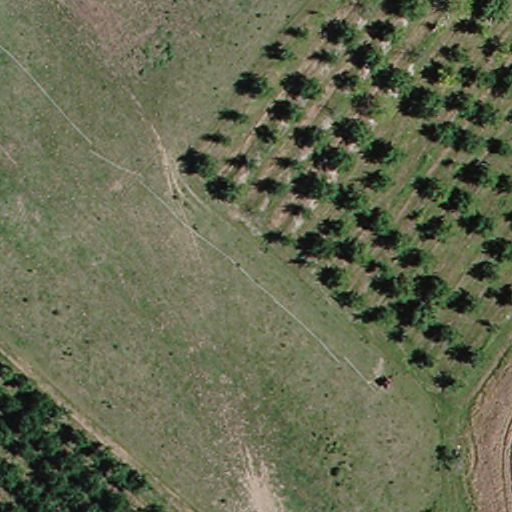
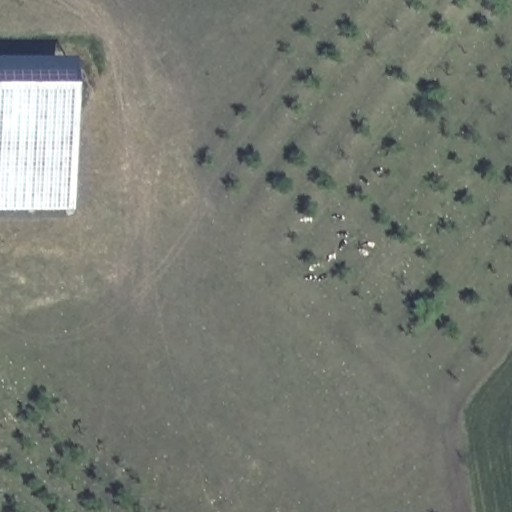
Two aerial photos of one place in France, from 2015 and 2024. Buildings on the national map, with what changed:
new [(71,212),(0,212),(0,60),(70,60),(71,212)]

